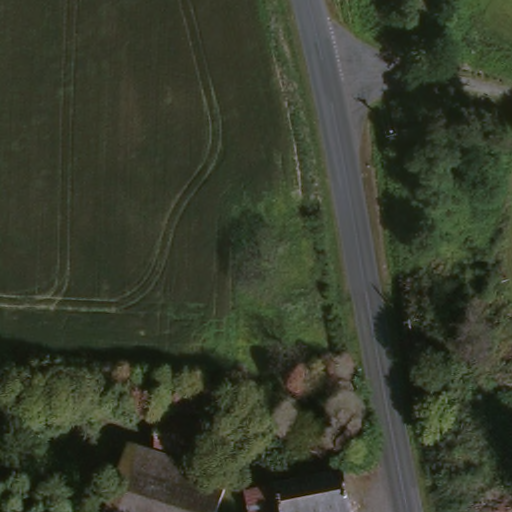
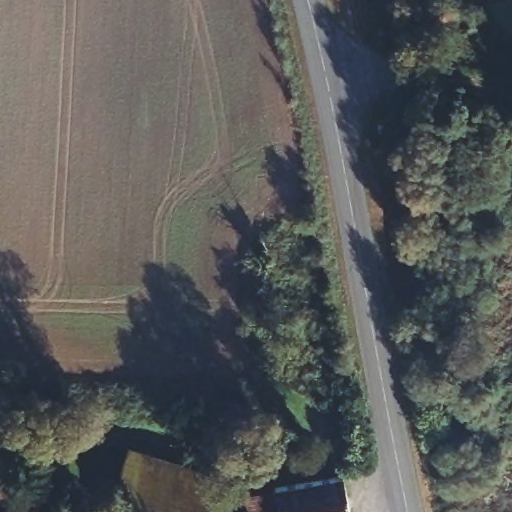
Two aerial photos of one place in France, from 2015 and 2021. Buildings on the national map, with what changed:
unchanged [(207,416),(205,460),(147,460),(150,416),(207,416)]
unchanged [(123,455),(221,479),(215,506),(115,485),(123,455)]
unchanged [(338,478),(345,512),(273,512),(270,492),(338,478)]
unchanged [(215,506),(213,512),(108,512),(115,485),(215,506)]
unchanged [(273,512),(244,512),(241,498),(270,492),(273,512)]

